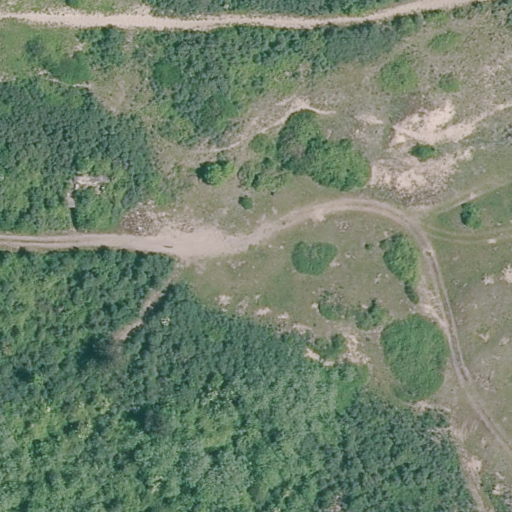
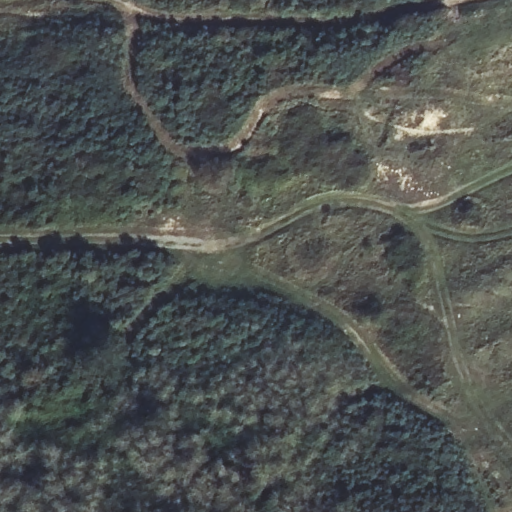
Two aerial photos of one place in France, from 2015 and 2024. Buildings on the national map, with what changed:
unchanged [(108,191),(80,192),(78,208),(63,210),(65,172),(108,170),(108,191)]

